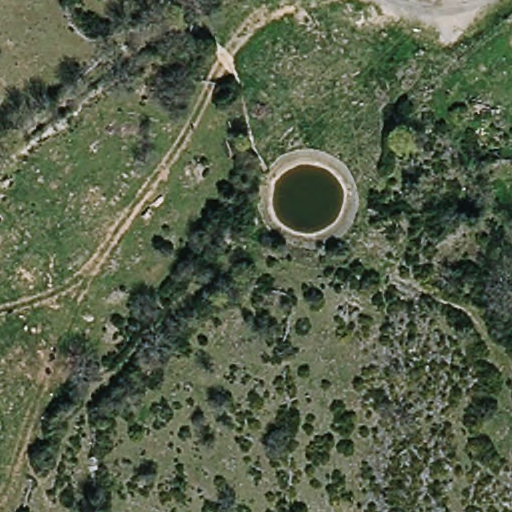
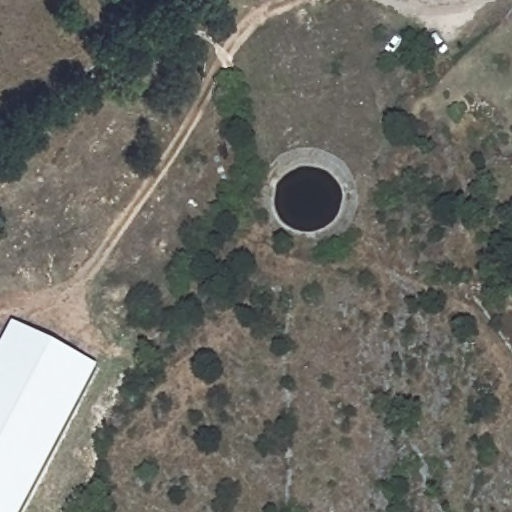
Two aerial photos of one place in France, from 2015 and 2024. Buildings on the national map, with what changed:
new [(0,512),(0,352),(14,325),(100,371),(25,512),(0,512)]

